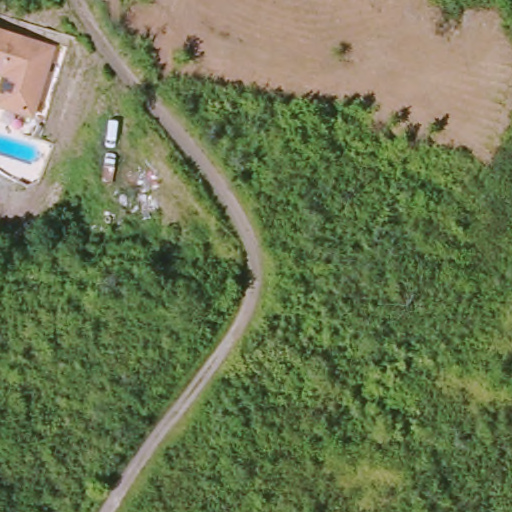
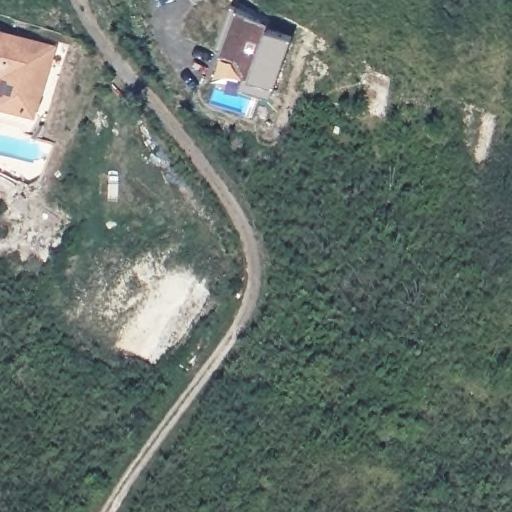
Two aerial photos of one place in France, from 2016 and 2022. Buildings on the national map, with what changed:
new [(234,6),(257,17),(256,22),(292,36),(270,95),(245,85),(249,74),(244,72),(235,52),(219,46),(234,6)]
unchanged [(0,72),(0,30),(52,47),(31,116),(2,105),(0,105),(0,79),(2,73),(0,72)]

